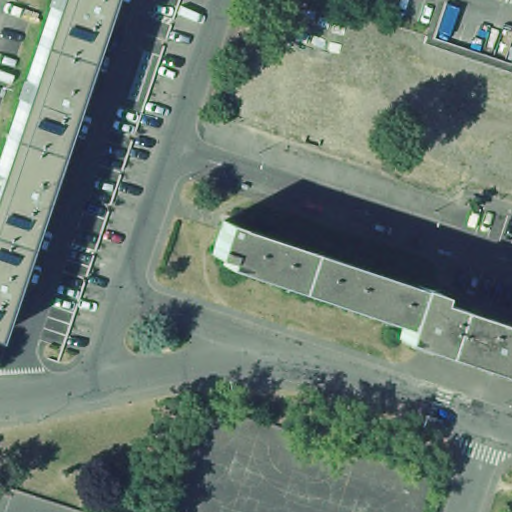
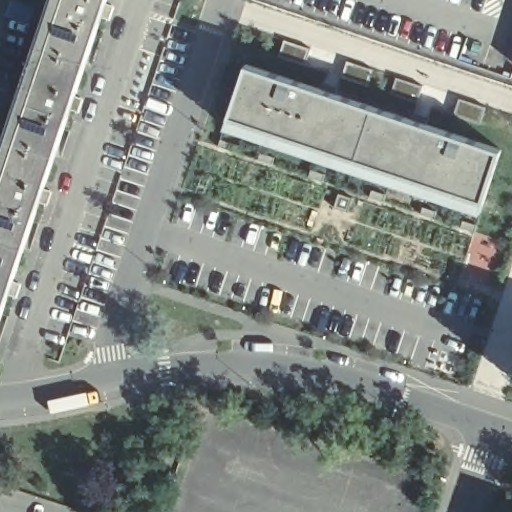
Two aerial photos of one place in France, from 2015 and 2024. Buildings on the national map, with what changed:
unchanged [(49,0),(101,0),(0,299),(0,145),(49,0)]
unchanged [(512,58),(506,56),(512,40),(512,58)]
new [(481,202),(228,116),(245,65),(500,149),(481,202)]
demolished [(435,302),(512,327),(512,375),(399,338),(402,327),(221,264),(223,258),(212,254),(222,221),(438,293),(435,302)]

